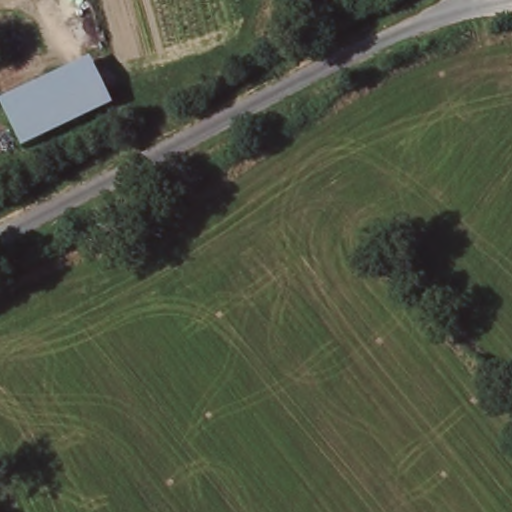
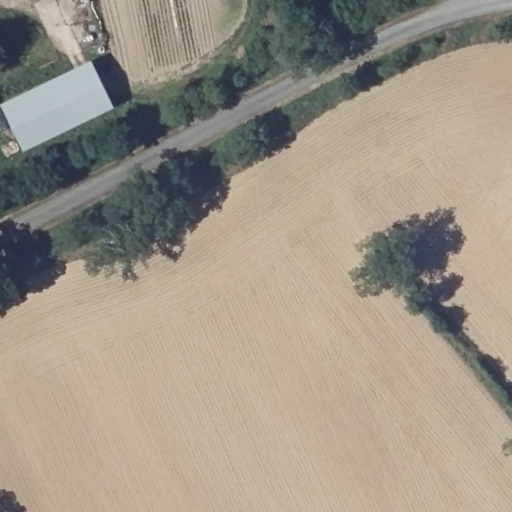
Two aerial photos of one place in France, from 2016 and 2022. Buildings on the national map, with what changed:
unchanged [(112,107),(20,149),(0,111),(0,104),(91,60),(112,107)]

